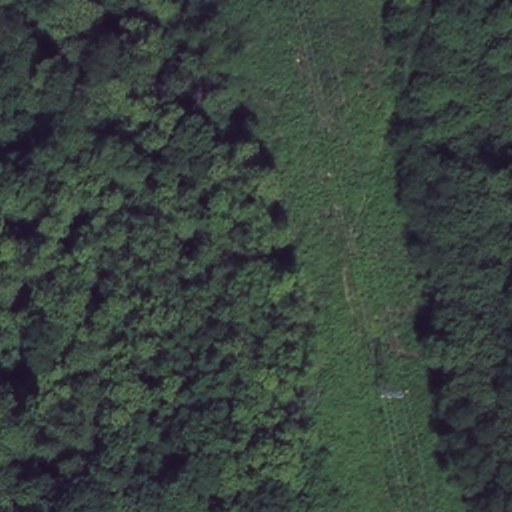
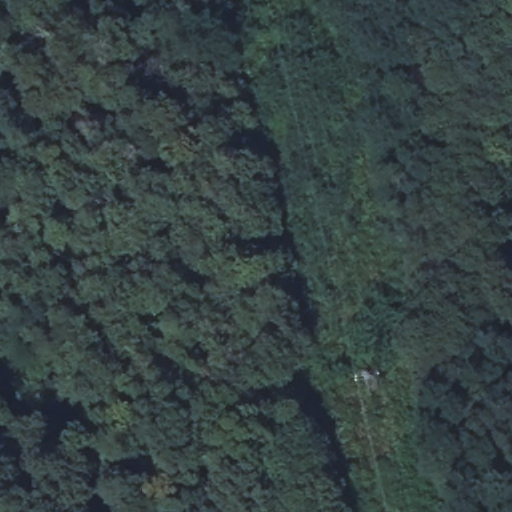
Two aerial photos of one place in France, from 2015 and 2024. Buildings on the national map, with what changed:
[]

